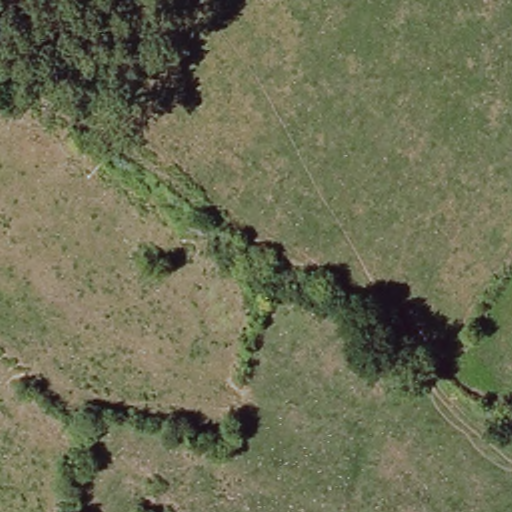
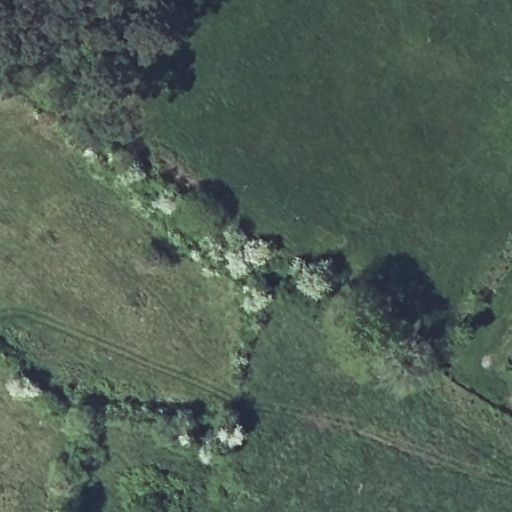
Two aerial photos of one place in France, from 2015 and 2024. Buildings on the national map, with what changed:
[]

